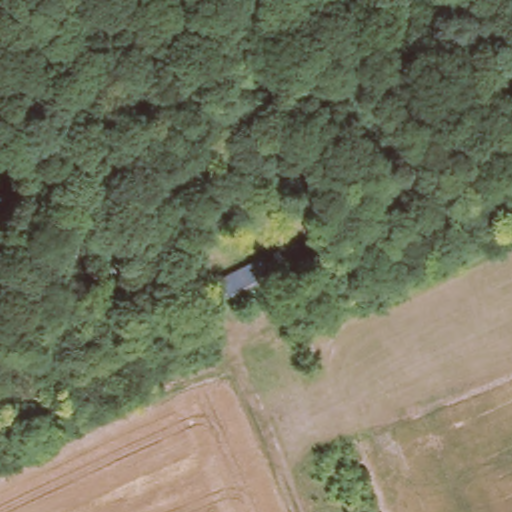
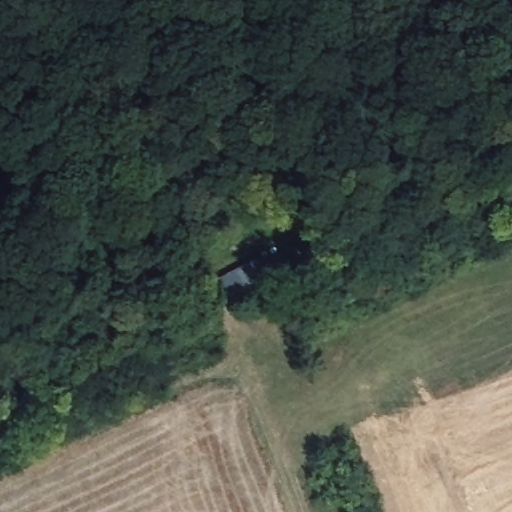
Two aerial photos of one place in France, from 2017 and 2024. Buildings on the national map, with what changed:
unchanged [(127,239),(135,272),(117,277),(108,246),(127,239)]
unchanged [(226,279),(268,257),(270,270),(276,266),(280,285),(237,307),(226,279)]

